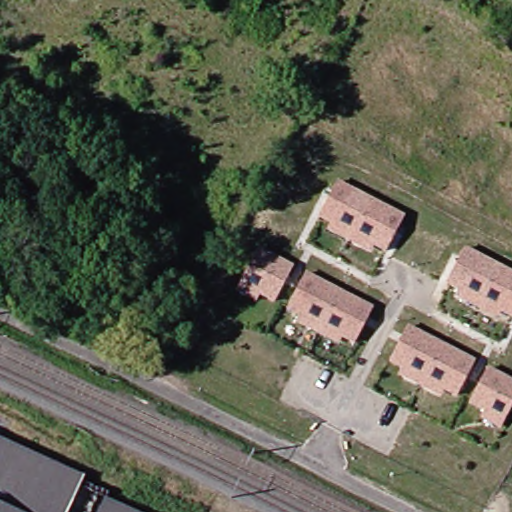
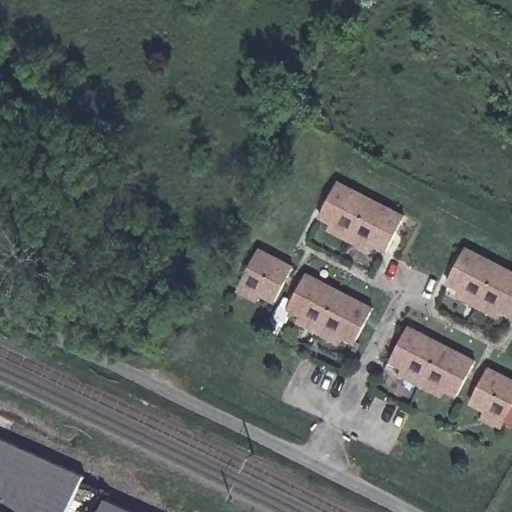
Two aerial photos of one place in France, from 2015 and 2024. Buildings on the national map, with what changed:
unchanged [(323,228),(328,220),(315,214),(333,179),(401,213),(382,249),(371,242),(367,249),(323,228)]
unchanged [(232,290),(235,282),(252,248),(288,265),(269,300),(256,293),(251,300),(232,290)]
unchanged [(455,297),(458,289),(447,284),(467,248),(512,271),(512,316),(502,311),(497,319),(455,297)]
unchanged [(297,321),(300,313),(288,307),(305,272),(373,305),(357,340),(344,334),(339,342),(297,321)]
unchanged [(401,377),(403,371),(390,363),(410,329),(476,362),(458,398),(446,391),(442,400),(401,377)]
unchanged [(478,414),(481,407),(467,399),(485,363),(512,379),(512,396),(502,418),(497,425),(478,414)]
unchanged [(76,512),(0,512),(0,433),(92,477),(76,512)]
unchanged [(117,499),(141,512),(110,512),(117,499)]

